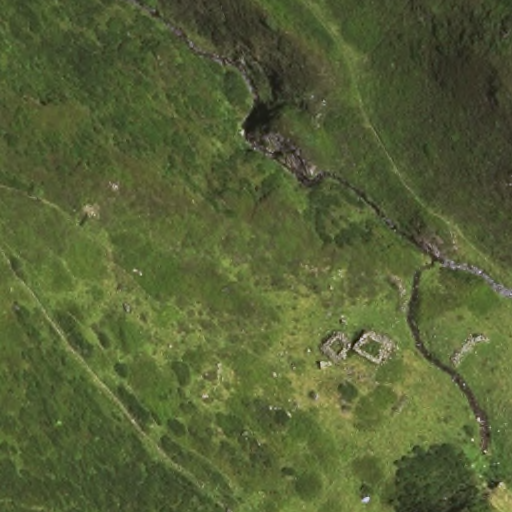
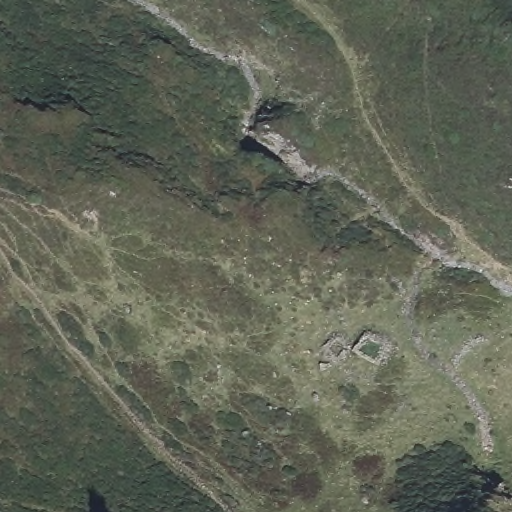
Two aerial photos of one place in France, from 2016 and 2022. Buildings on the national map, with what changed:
[]

